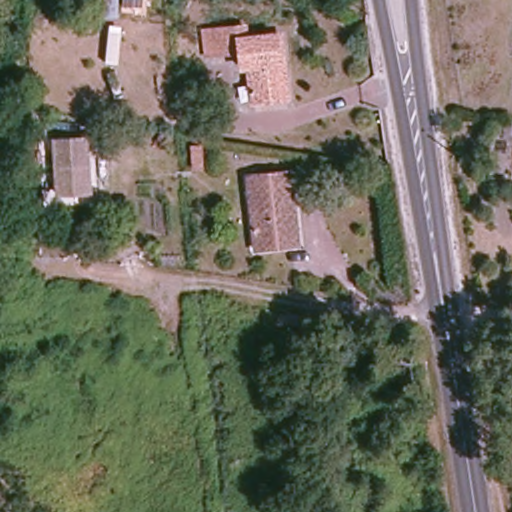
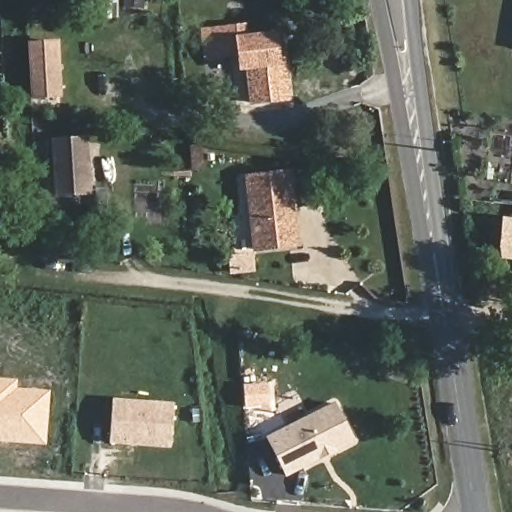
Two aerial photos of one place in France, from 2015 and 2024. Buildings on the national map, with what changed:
unchanged [(97,20),(96,0),(117,0),(118,17),(97,20)]
unchanged [(242,41),(274,39),(286,103),(249,106),(240,71),(224,72),(221,55),(205,57),(203,32),(216,29),(239,26),(242,41)]
new [(60,40),(65,92),(37,95),(33,42),(60,40)]
unchanged [(91,185),(56,189),(51,139),(87,135),(91,185)]
unchanged [(296,245),(252,252),(240,177),(284,170),(296,245)]
new [(501,217),(512,219),(512,259),(496,257),(501,217)]
new [(50,391),(48,447),(0,443),(0,378),(15,380),(14,387),(50,391)]
new [(117,400),(177,405),(175,447),(114,442),(117,400)]
new [(286,477),(266,437),(335,402),(355,442),(286,477)]

